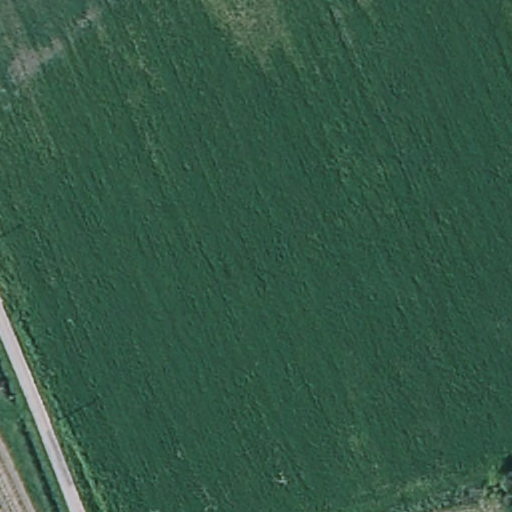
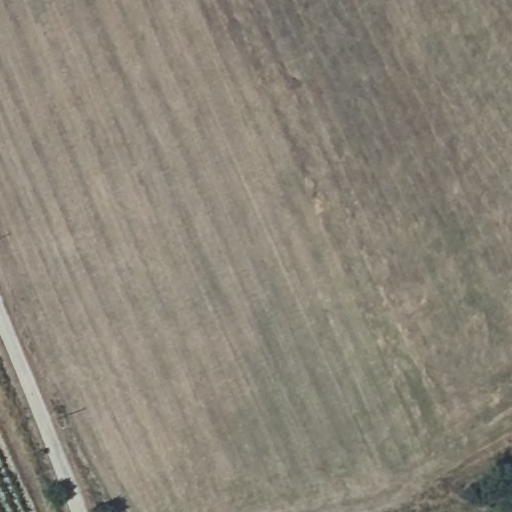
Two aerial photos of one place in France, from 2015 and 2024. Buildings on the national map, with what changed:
[]

